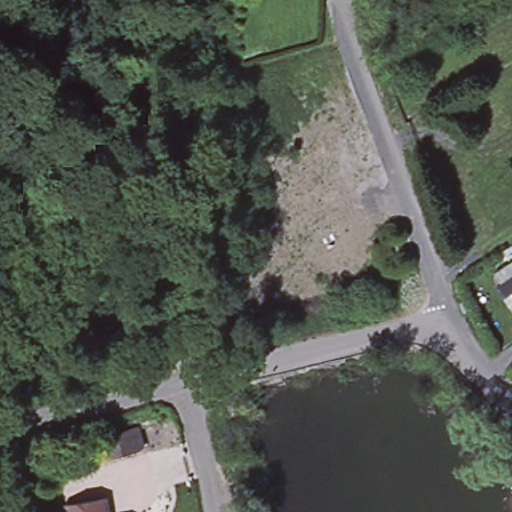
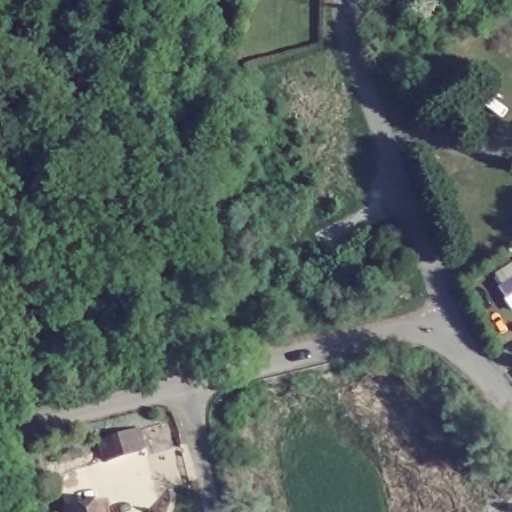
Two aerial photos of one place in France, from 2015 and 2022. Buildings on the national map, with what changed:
unchanged [(132,428),(137,447),(104,456),(99,438),(132,428)]
unchanged [(100,499),(103,499),(105,512),(65,512),(63,505),(100,499)]

